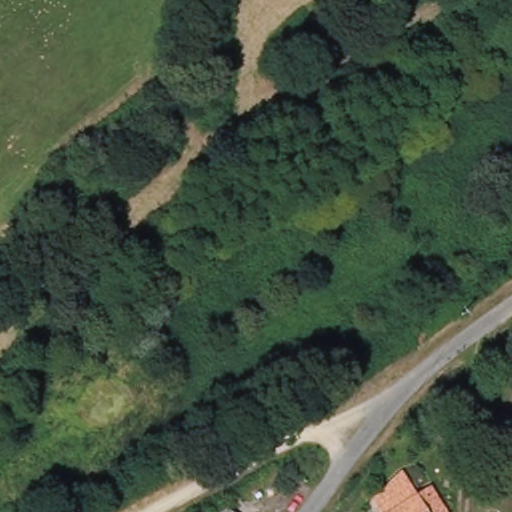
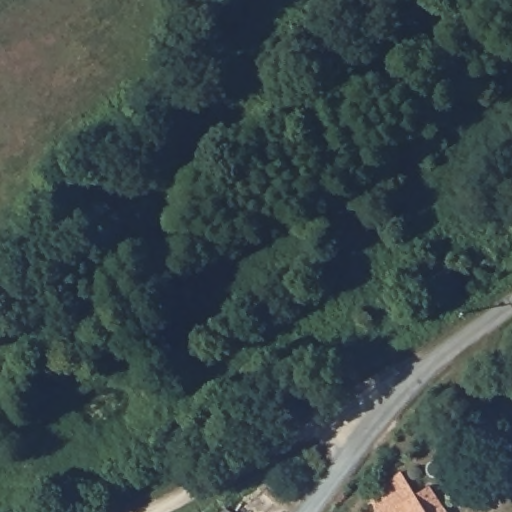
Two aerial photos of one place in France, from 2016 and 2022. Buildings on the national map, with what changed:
unchanged [(404,478),(419,500),(431,490),(446,512),(378,512),(376,506),(404,478)]
unchanged [(227,512),(224,512),(226,511),(227,512)]

